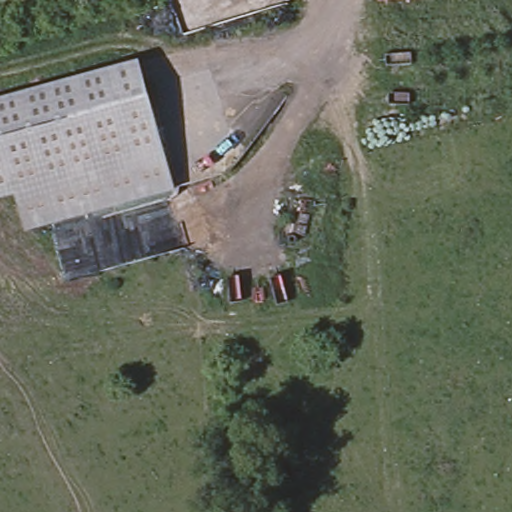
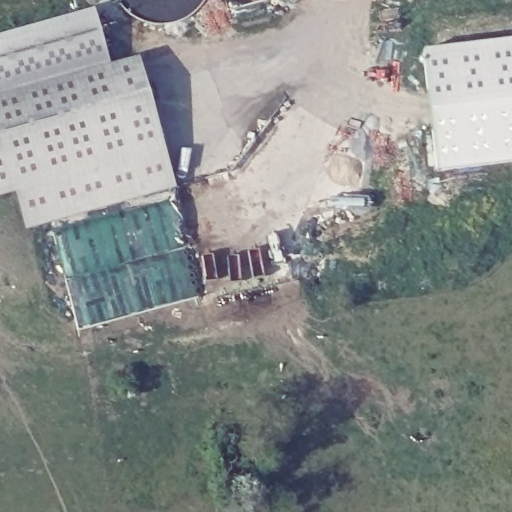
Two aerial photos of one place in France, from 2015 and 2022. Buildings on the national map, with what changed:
new [(108,65),(0,94),(0,33),(92,8),(108,65)]
new [(422,50),(512,41),(512,115),(431,135),(422,50)]
unchanged [(139,66),(0,106),(0,94),(137,57),(139,66)]
unchanged [(147,95),(0,137),(0,106),(139,66),(147,95)]
unchanged [(155,124),(0,166),(0,137),(147,95),(155,124)]
new [(512,115),(512,162),(435,170),(431,135),(512,115)]
unchanged [(163,152),(18,192),(17,187),(0,192),(0,166),(155,124),(163,152)]
unchanged [(27,225),(27,221),(18,192),(163,152),(172,181),(172,185),(27,225)]

